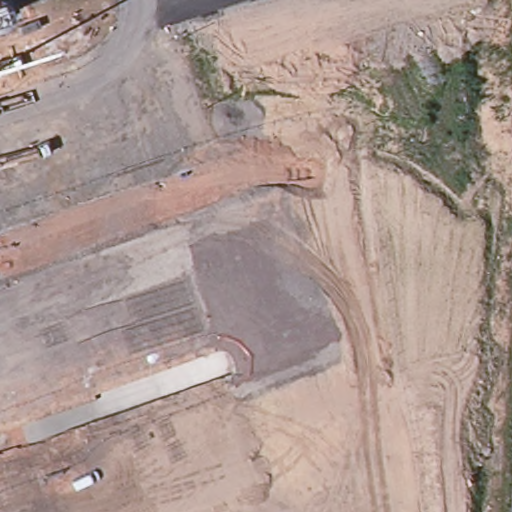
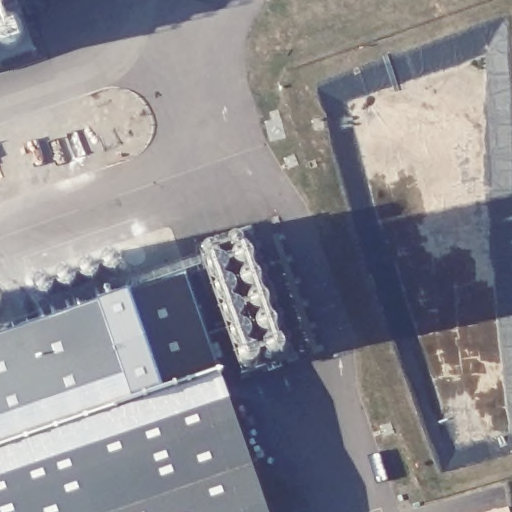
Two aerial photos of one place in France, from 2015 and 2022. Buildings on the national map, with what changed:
new [(3,310),(12,332),(49,320),(40,298),(34,277),(119,249),(125,269),(129,280),(205,251),(247,235),(253,252),(289,357),(248,371),(212,270),(208,261),(186,271),(221,372),(269,512),(0,512),(0,300),(3,310)]

